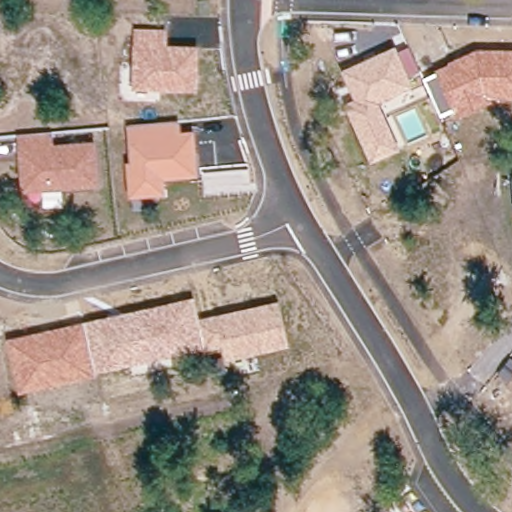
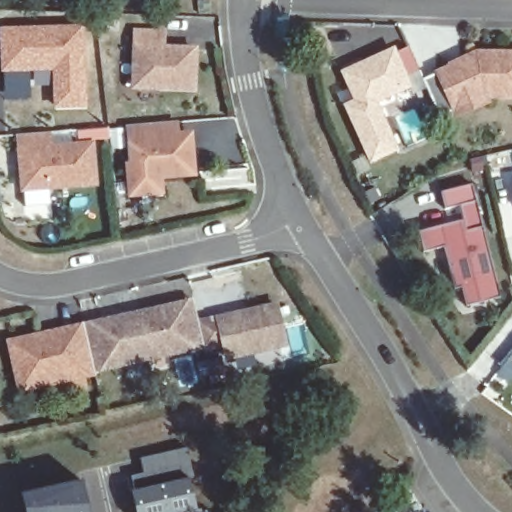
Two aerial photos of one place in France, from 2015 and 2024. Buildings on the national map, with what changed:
new [(2,73),(0,46),(0,26),(84,25),(87,109),(52,110),(50,86),(30,86),(30,100),(4,101),(2,73)]
unchanged [(134,29),(167,30),(166,44),(198,45),(196,91),(131,88),(134,29)]
unchanged [(396,46),(398,50),(408,46),(418,71),(407,76),(412,88),(380,104),(399,150),(370,163),(344,104),(352,100),(340,71),(396,46)]
unchanged [(476,50),(512,51),(512,99),(489,99),(491,105),(458,119),(452,109),(439,116),(423,79),(436,70),(476,50)]
unchanged [(125,163),(130,162),(126,126),(180,123),(180,131),(194,130),(199,177),(164,180),(165,195),(129,198),(125,163)]
unchanged [(63,191),(63,207),(43,208),(41,193),(20,193),(17,134),(52,131),(52,145),(96,141),(99,187),(63,191)]
unchanged [(511,175),(512,174),(512,181),(511,175)]
new [(465,208),(450,212),(445,195),(477,187),(481,204),(487,228),(505,299),(470,308),(466,289),(460,291),(449,248),(428,254),(422,233),(468,221),(465,208)]
unchanged [(6,340),(192,298),(198,320),(279,302),(290,347),(225,361),(221,347),(95,374),(96,378),(17,394),(6,340)]
new [(194,478),(190,479),(197,510),(201,510),(202,512),(136,512),(131,491),(135,490),(132,477),(144,474),(140,458),(186,448),(194,478)]
new [(88,512),(24,512),(20,493),(80,480),(88,512)]

